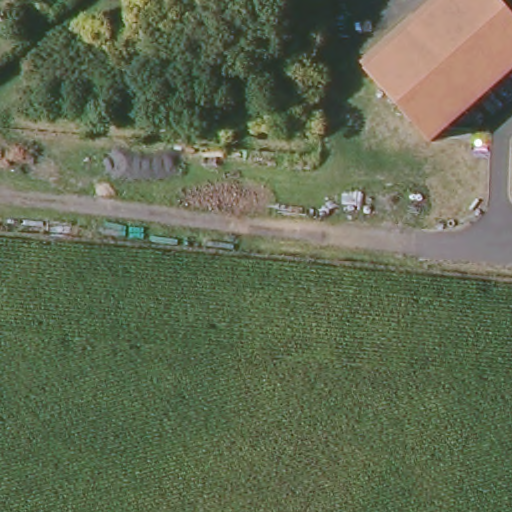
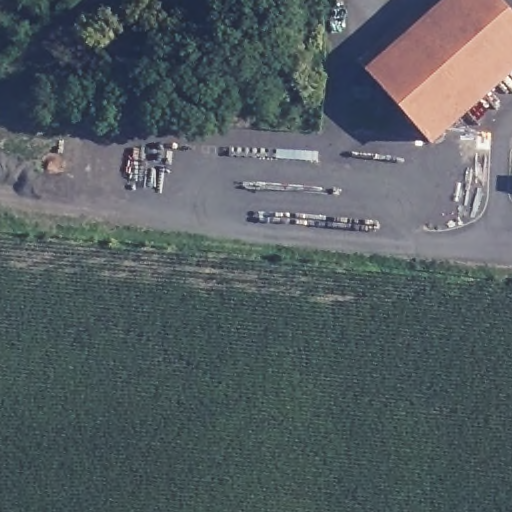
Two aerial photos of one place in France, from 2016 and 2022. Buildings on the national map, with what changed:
unchanged [(431,0),(449,0),(367,76),(359,67),(431,0)]
unchanged [(448,130),(430,146),(367,76),(449,0),(494,0),(512,19),(512,72),(448,130)]

